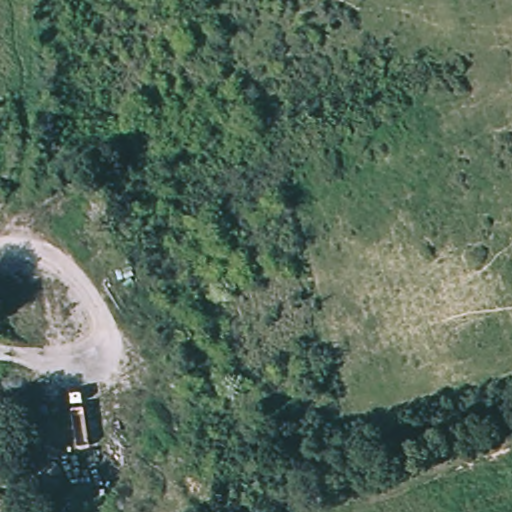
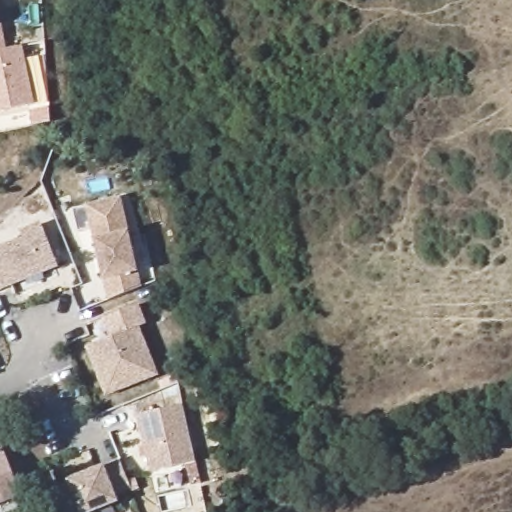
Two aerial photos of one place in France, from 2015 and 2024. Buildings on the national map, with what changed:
new [(0,43),(0,22),(4,42),(0,43)]
new [(20,40),(32,97),(0,104),(0,43),(4,42),(20,40)]
new [(85,207),(85,205),(121,197),(130,232),(129,235),(138,272),(142,287),(108,302),(104,279),(101,280),(92,239),(90,231),(78,235),(73,210),(85,207)]
new [(18,229),(42,221),(58,267),(0,288),(0,245),(21,237),(18,229)]
new [(139,303),(146,324),(142,326),(159,375),(105,397),(84,347),(107,337),(101,318),(139,303)]
new [(181,403),(193,462),(150,472),(137,414),(181,403)]
new [(21,493),(0,502),(0,454),(5,452),(21,493)]
new [(67,479),(104,465),(120,458),(131,490),(116,495),(119,502),(90,512),(79,512),(67,479)]

